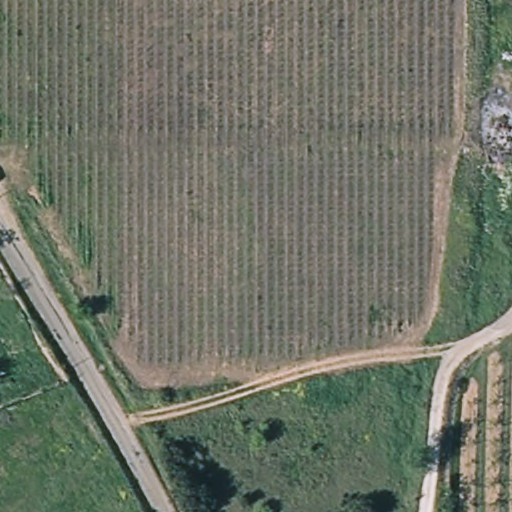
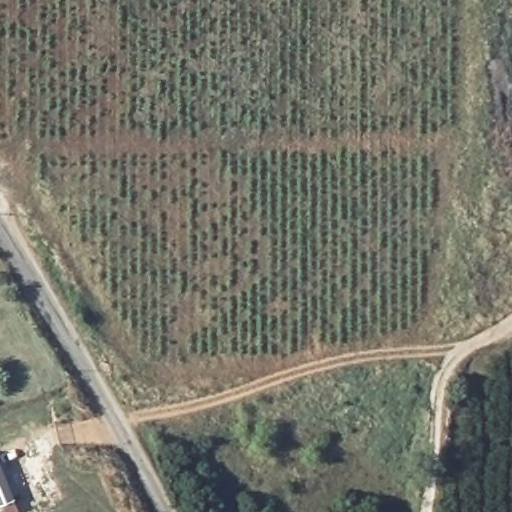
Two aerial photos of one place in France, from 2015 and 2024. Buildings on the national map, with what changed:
new [(2,512),(0,506),(0,467),(18,511),(14,512),(2,512)]

